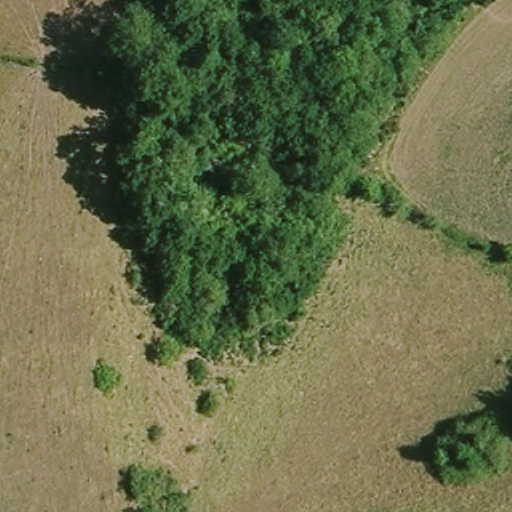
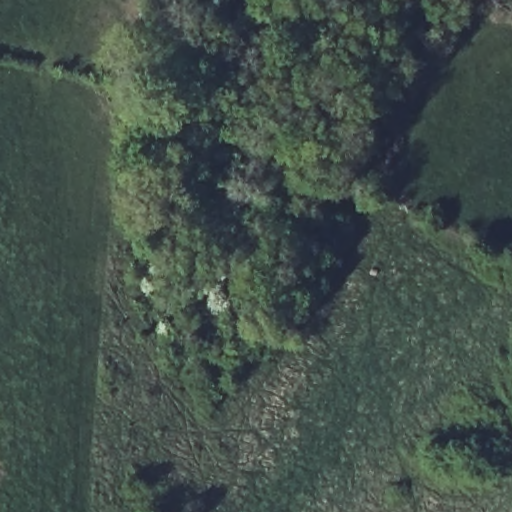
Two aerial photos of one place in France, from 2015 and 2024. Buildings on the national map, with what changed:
[]

